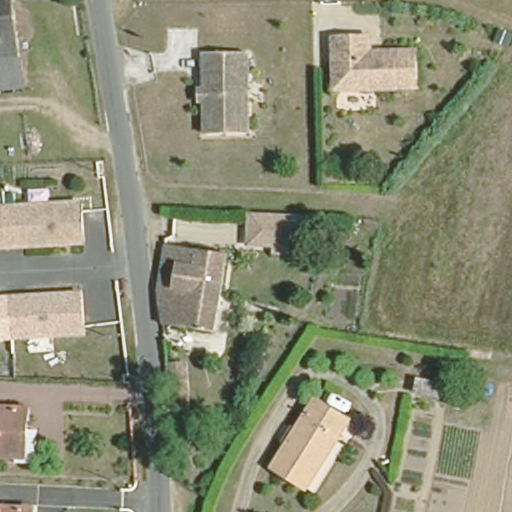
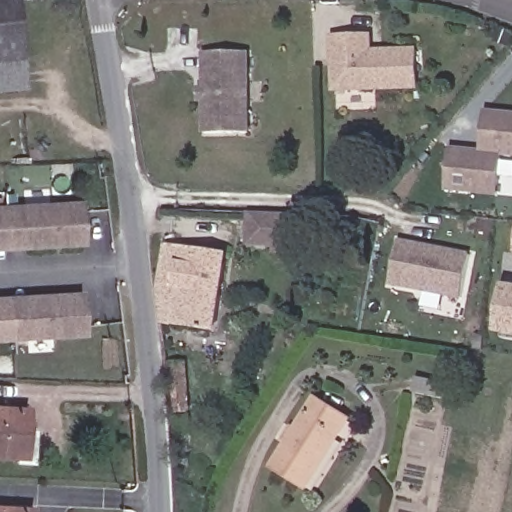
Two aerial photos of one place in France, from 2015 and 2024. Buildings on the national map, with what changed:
unchanged [(0,0),(15,0),(21,53),(25,82),(0,84),(0,0)]
unchanged [(414,91),(332,93),(330,39),(366,39),(367,55),(380,55),(412,54),(414,91)]
unchanged [(196,88),(201,88),(201,52),(245,52),(244,133),(201,132),(201,101),(195,101),(196,88)]
new [(512,116),(512,158),(500,156),(495,197),(445,191),(450,150),(479,154),(484,113),(512,116)]
unchanged [(85,243),(27,246),(8,247),(0,248),(0,207),(82,201),(85,243)]
unchanged [(275,253),(275,244),(250,243),(251,213),(306,215),(305,246),(304,255),(275,253)]
unchanged [(167,240),(226,249),(214,327),(164,319),(159,285),(167,240)]
new [(469,256),(461,299),(389,285),(396,244),(469,256)]
new [(501,340),(502,332),(498,331),(505,289),(509,290),(510,283),(512,283),(512,342),(501,340)]
unchanged [(0,341),(0,297),(84,292),(86,336),(0,341)]
unchanged [(167,362),(185,361),(185,385),(170,386),(167,362)]
unchanged [(450,402),(416,397),(418,382),(452,386),(450,402)]
unchanged [(349,416),(308,481),(275,461),(288,440),(282,436),(292,421),(297,424),(315,395),(349,416)]
unchanged [(28,422),(34,423),(32,452),(0,450),(0,402),(28,403),(28,422)]
unchanged [(33,512),(0,512),(0,502),(33,503),(33,512)]

